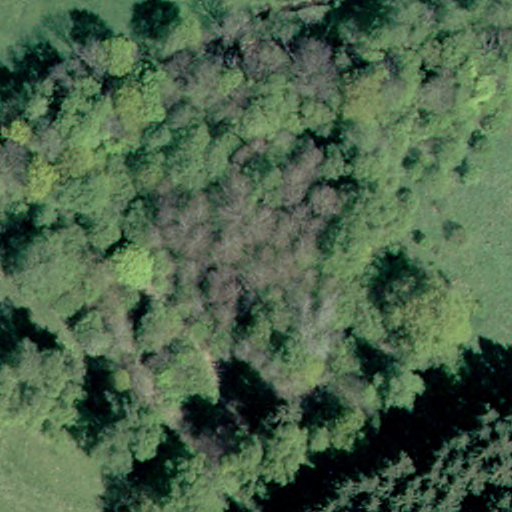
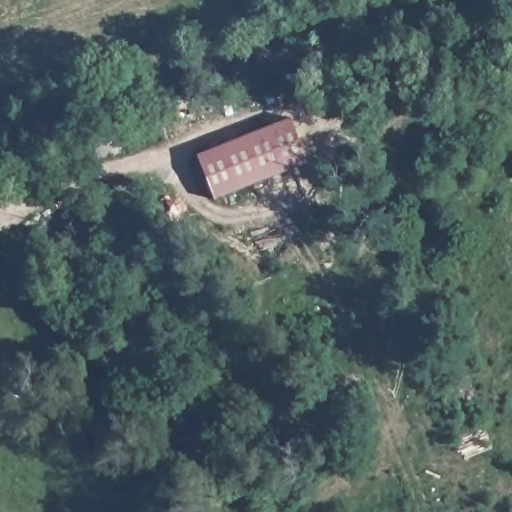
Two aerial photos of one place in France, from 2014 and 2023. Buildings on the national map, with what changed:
new [(306,162),(212,199),(195,155),(288,118),(306,162)]

